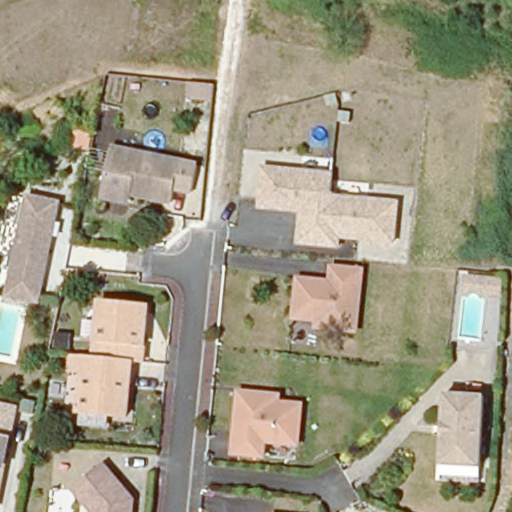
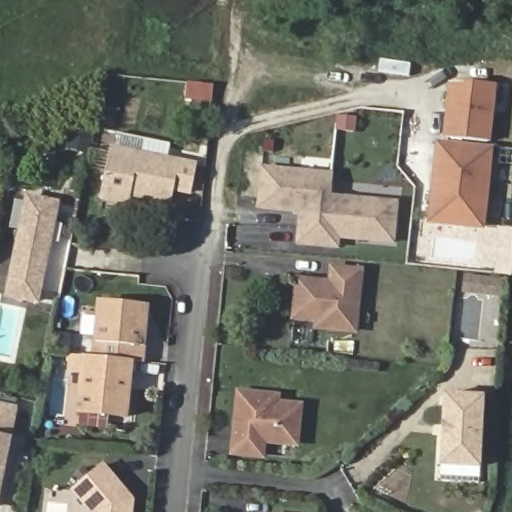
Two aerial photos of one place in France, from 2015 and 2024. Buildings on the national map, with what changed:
new [(492,141),(444,136),(450,82),(464,84),(465,80),(498,84),(492,141)]
new [(485,230),(427,224),(437,140),(494,146),(485,230)]
unchanged [(178,160),(175,201),(124,196),(123,205),(104,204),(109,154),(178,160)]
unchanged [(325,246),(298,243),(301,211),(259,207),(263,168),(301,172),(303,157),(333,159),(332,174),(330,196),(397,202),(394,242),(341,237),(340,247),(325,246)]
unchanged [(55,205),(37,303),(7,298),(26,200),(55,205)]
unchanged [(327,281),(328,267),(357,269),(352,329),(313,326),(314,318),(291,317),(294,278),(327,281)]
unchanged [(63,364),(64,355),(79,356),(89,357),(94,301),(151,306),(146,362),(126,360),(121,416),(74,412),(78,372),(63,371),(63,364)]
unchanged [(299,447),(269,445),(267,461),(230,456),(236,390),(283,393),(283,402),(302,402),(299,447)]
unchanged [(480,397),(476,467),(437,465),(442,394),(480,397)]
unchanged [(12,410),(0,472),(0,407),(12,410)]
unchanged [(100,465),(129,500),(128,511),(128,512),(88,512),(70,490),(100,465)]

